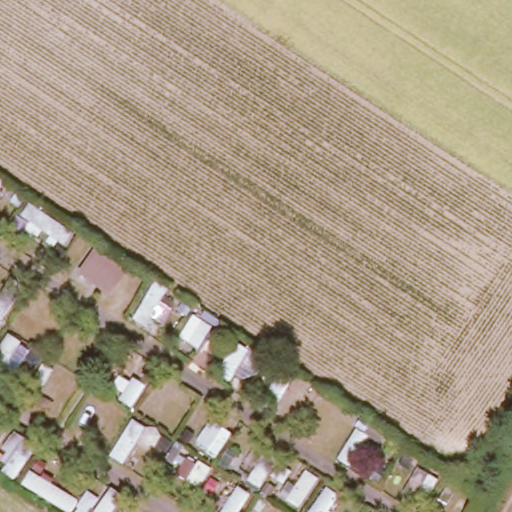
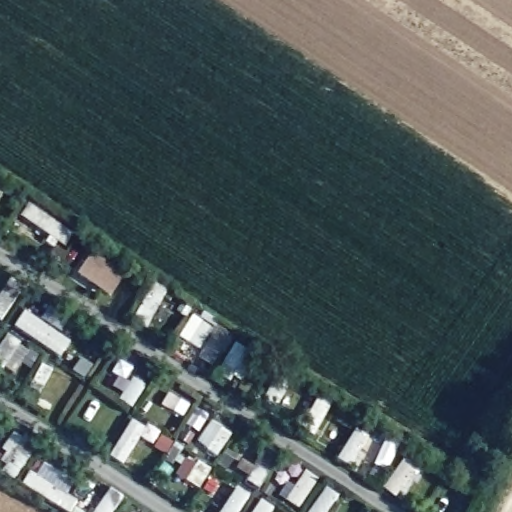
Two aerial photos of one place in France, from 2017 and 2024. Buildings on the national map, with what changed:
unchanged [(120,274),(108,294),(76,275),(88,255),(120,274)]

